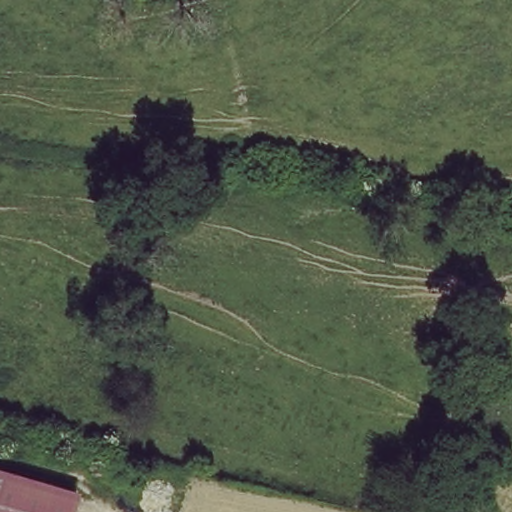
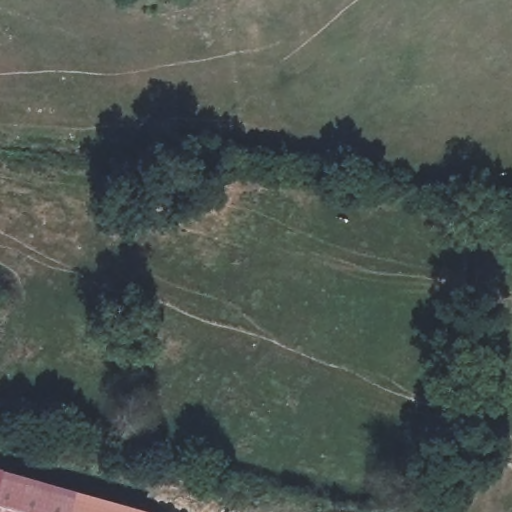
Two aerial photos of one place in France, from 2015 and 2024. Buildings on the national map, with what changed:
unchanged [(78,512),(0,512),(0,469),(84,493),(78,512)]
new [(84,493),(151,512),(78,512),(84,493)]

